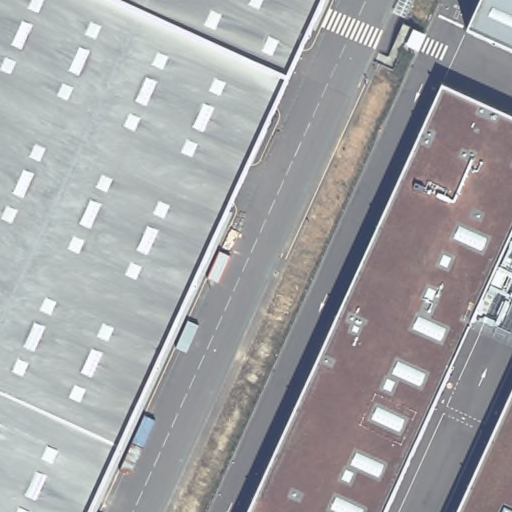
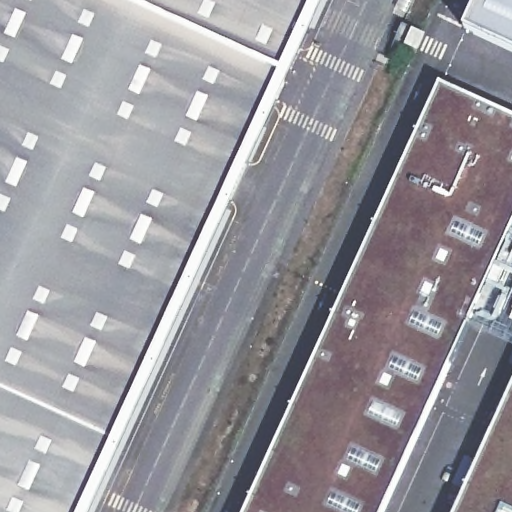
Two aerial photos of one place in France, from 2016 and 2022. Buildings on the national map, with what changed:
unchanged [(99,512),(0,512),(0,0),(328,0),(197,294),(99,512)]
unchanged [(512,0),(512,48),(473,30),(486,0),(512,0)]
unchanged [(512,124),(512,240),(473,325),(402,487),(390,512),(251,512),(283,439),(440,91),(512,124)]
unchanged [(473,325),(512,240),(512,343),(473,325)]
unchanged [(512,399),(512,512),(461,512),(512,399)]

